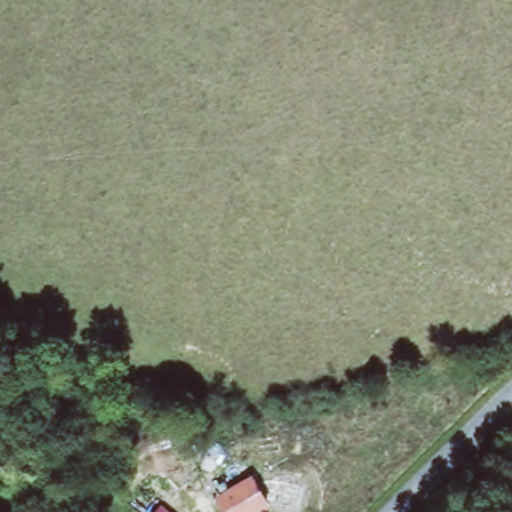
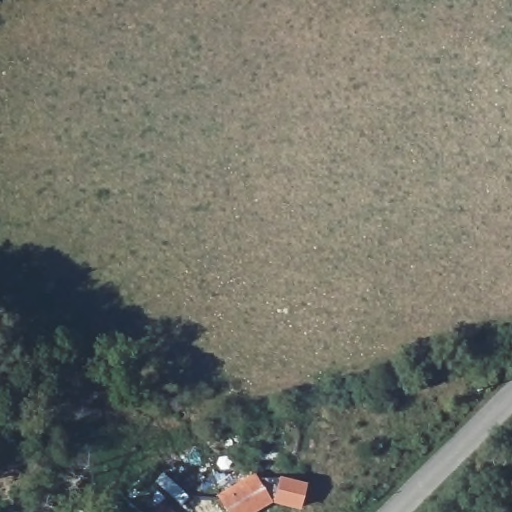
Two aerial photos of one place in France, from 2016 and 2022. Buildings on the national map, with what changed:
unchanged [(267,504),(252,512),(227,512),(220,500),(255,482),(267,504)]
unchanged [(172,512),(156,512),(163,503),(172,512)]

